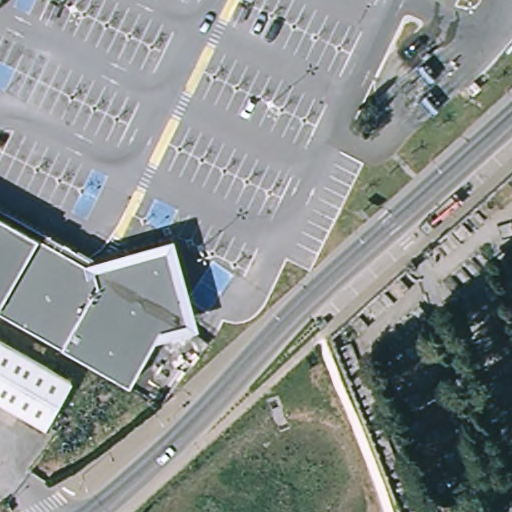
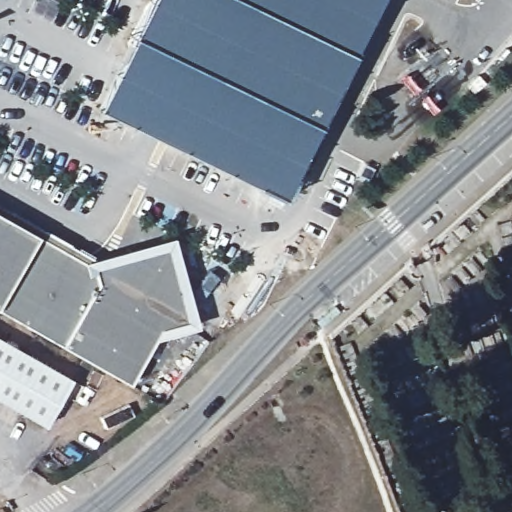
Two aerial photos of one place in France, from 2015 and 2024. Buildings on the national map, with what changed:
new [(94,105),(145,0),(374,0),(281,194),(94,105)]
unchanged [(95,262),(176,238),(203,330),(160,340),(136,387),(0,307),(0,207),(95,262)]
unchanged [(42,431),(0,407),(0,346),(68,385),(42,431)]

